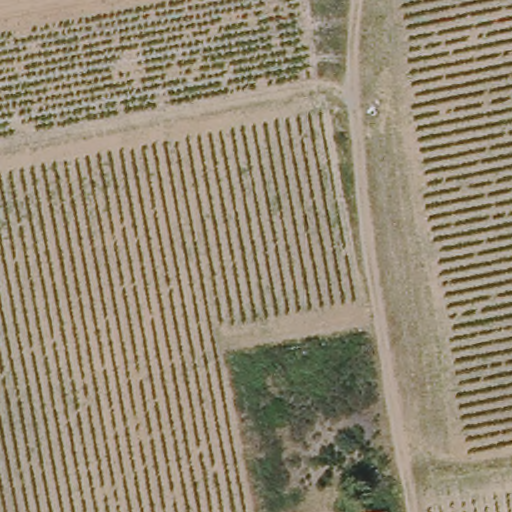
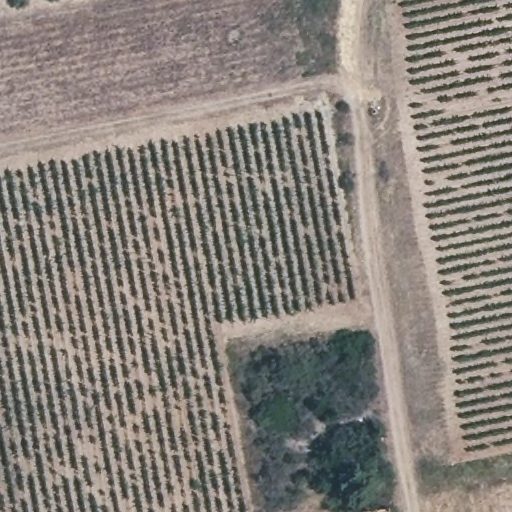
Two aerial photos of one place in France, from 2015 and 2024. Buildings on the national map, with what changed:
unchanged [(384,507),(384,512),(356,512),(356,511),(384,507)]

